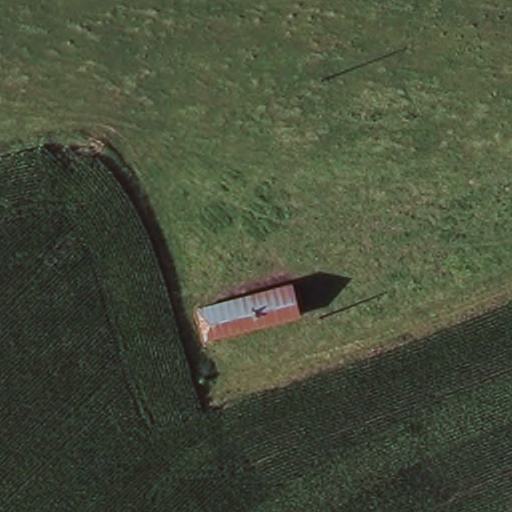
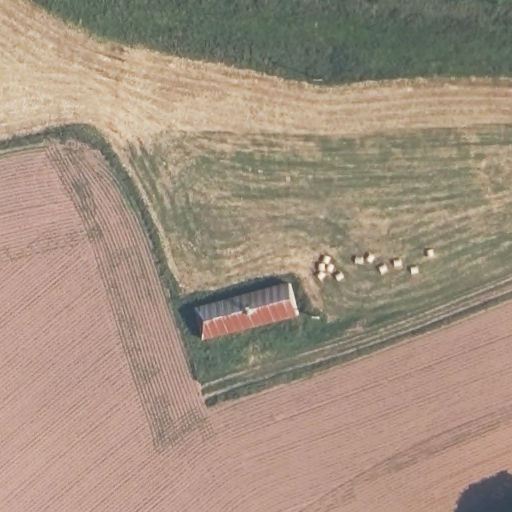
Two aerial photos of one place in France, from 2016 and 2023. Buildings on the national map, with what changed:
unchanged [(204,307),(231,299),(296,282),(303,314),(240,329),(211,337),(204,307)]

